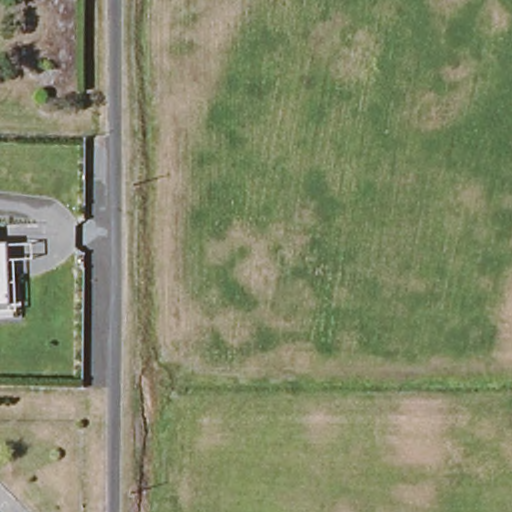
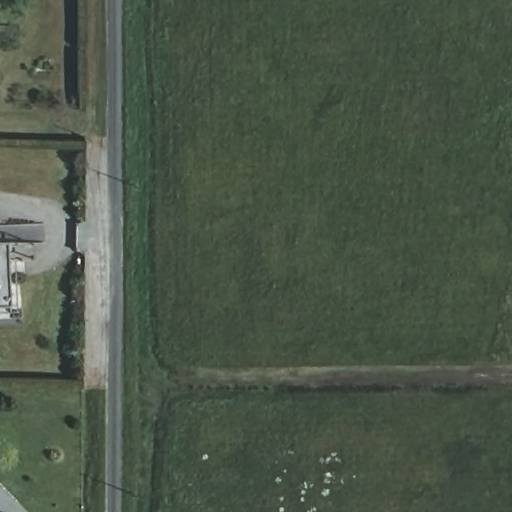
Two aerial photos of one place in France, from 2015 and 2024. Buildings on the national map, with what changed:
unchanged [(33,259),(9,261),(11,304),(0,305),(0,241),(31,240),(33,259)]

